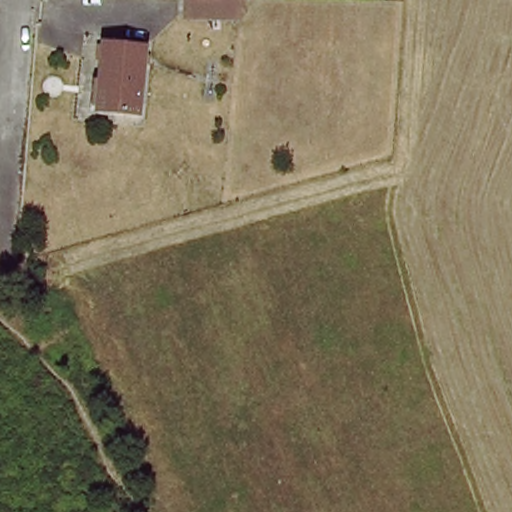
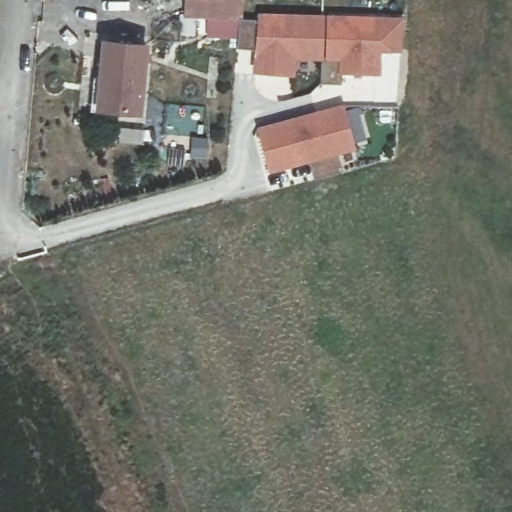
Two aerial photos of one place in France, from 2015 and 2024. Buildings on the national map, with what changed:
new [(258,21),(259,13),(404,17),(402,53),(381,54),(380,75),(341,74),(340,84),(323,82),(324,61),(297,60),(294,77),(254,73),(255,49),(238,47),(238,37),(205,37),(206,19),(183,17),(184,0),(241,0),(241,21),(258,21)]
demolished [(190,0),(237,0),(237,8),(190,6),(190,0)]
unchanged [(99,100),(104,36),(150,40),(145,104),(99,100)]
new [(344,106),(357,150),(337,156),(341,171),(315,179),(311,162),(270,172),(257,127),(344,106)]
unchanged [(186,164),(203,161),(205,175),(189,177),(186,164)]

